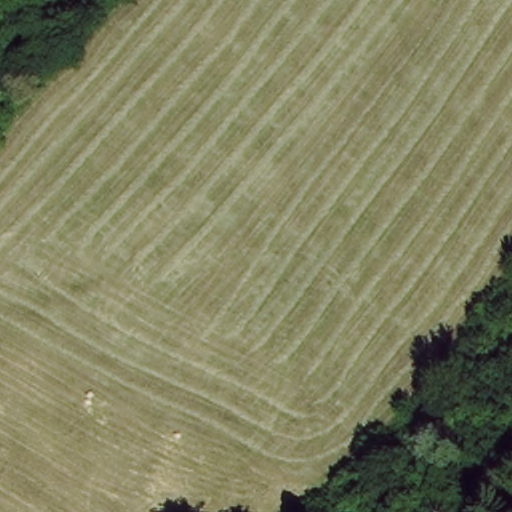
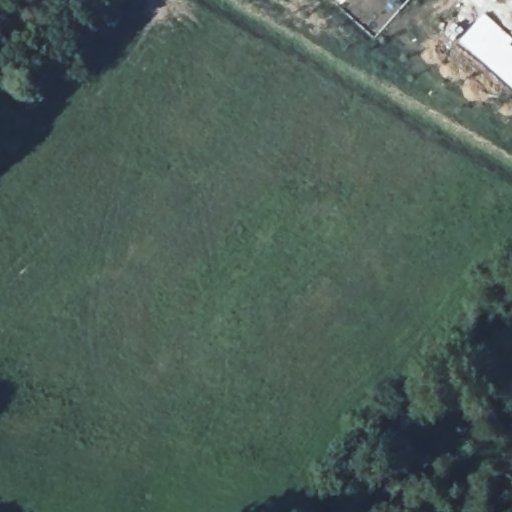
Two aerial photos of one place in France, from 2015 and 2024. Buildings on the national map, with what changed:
new [(512,89),(457,42),(483,12),(505,32),(512,39),(512,89)]

